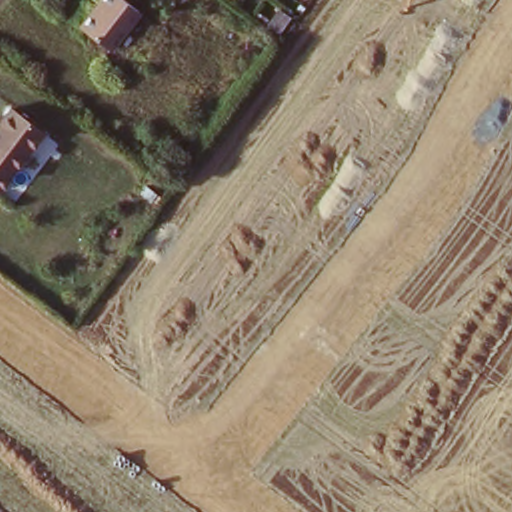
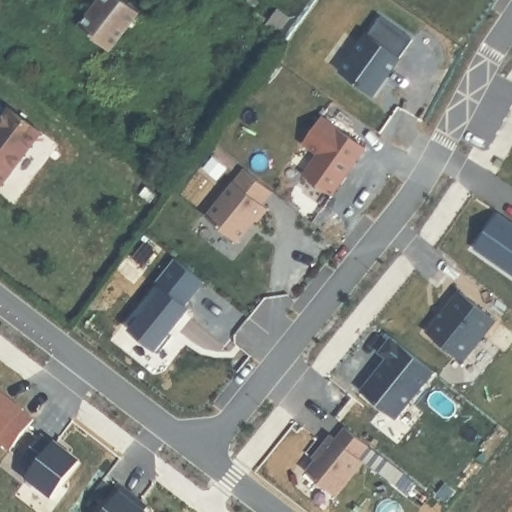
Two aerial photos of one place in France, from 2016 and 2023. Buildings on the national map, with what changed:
unchanged [(129,0),(137,6),(109,44),(82,23),(98,0),(129,0)]
new [(408,36),(368,89),(333,64),(374,8),(408,36)]
unchanged [(40,129),(0,183),(0,121),(10,108),(40,129)]
new [(359,140),(327,187),(297,170),(314,146),(297,139),(317,109),(359,140)]
new [(496,158),(502,161),(497,168),(492,164),(496,158)]
new [(233,235),(197,213),(238,159),(269,184),(233,235)]
new [(497,213),(512,223),(512,275),(473,248),(497,213)]
new [(117,320),(152,279),(179,302),(157,325),(160,328),(145,345),(117,320)]
new [(458,291),(495,320),(462,361),(426,332),(458,291)]
new [(432,370),(393,418),(361,391),(387,357),(380,351),(391,337),(432,370)]
new [(0,389),(22,406),(21,407),(32,416),(9,447),(0,440),(0,389)]
new [(81,459),(54,492),(20,470),(26,463),(16,456),(37,426),(81,459)]
new [(367,446),(358,458),(363,462),(335,496),(305,472),(322,451),(318,449),(330,435),(335,439),(344,427),(367,446)]
new [(135,506),(142,512),(97,512),(117,486),(138,502),(135,506)]

